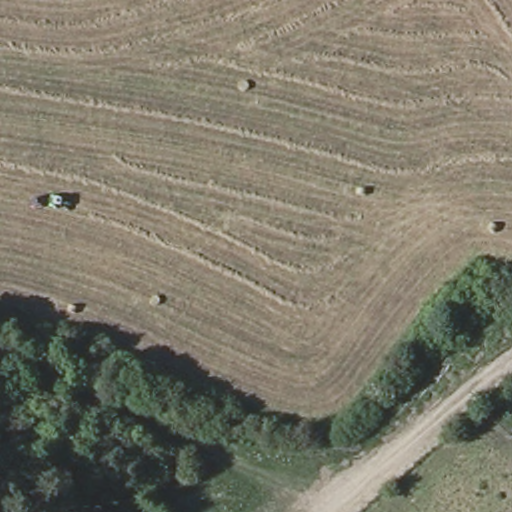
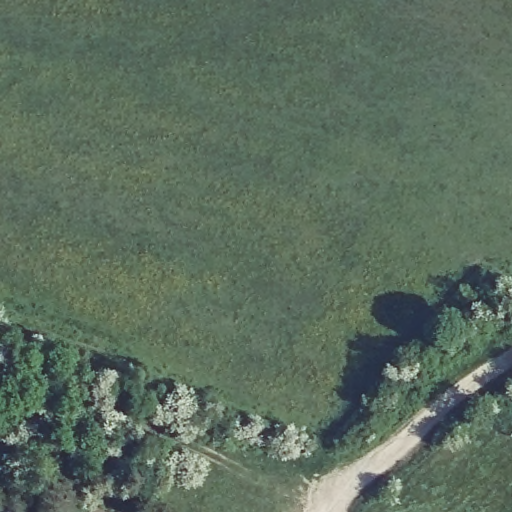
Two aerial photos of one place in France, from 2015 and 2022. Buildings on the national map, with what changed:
unchanged [(108,512),(89,512),(95,504),(108,512)]

